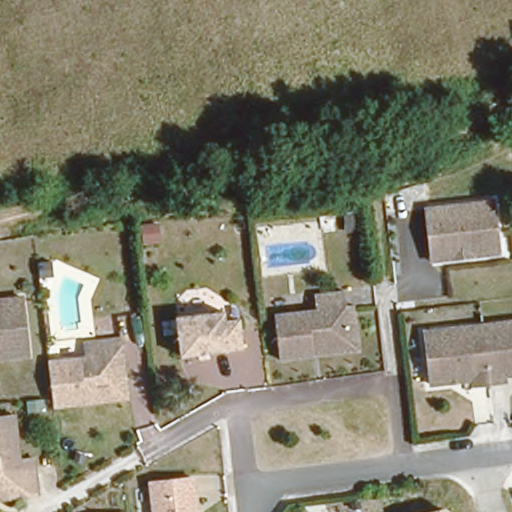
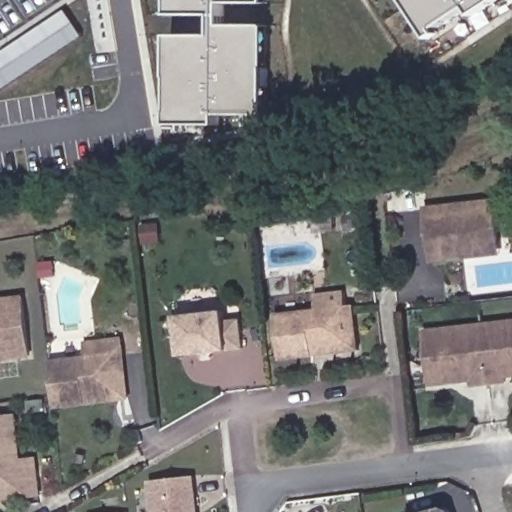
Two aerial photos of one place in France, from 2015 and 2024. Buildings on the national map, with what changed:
new [(171,36),(215,36),(215,16),(170,15),(170,0),(270,0),(270,4),(224,4),(224,25),(270,25),(271,70),(270,70),(270,121),(262,121),(261,115),(221,116),(221,125),(171,125),(171,36)]
new [(475,17),(469,10),(436,30),(440,35),(430,41),(404,0),(500,0),(475,17)]
new [(66,11),(84,37),(0,92),(0,54),(66,11)]
unchanged [(422,237),(421,209),(497,203),(500,237),(501,256),(475,258),(435,261),(423,262),(422,237)]
unchanged [(343,341),(337,350),(312,353),(311,362),(278,366),(273,319),(317,315),(316,295),(340,292),(343,341)]
unchanged [(24,354),(0,357),(0,298),(16,297),(24,354)]
unchanged [(234,352),(167,359),(165,315),(211,310),(213,318),(232,320),(234,352)]
unchanged [(500,384),(463,388),(463,381),(419,384),(417,329),(512,322),(512,376),(499,378),(500,384)]
unchanged [(89,357),(89,339),(122,335),(125,352),(120,353),(120,379),(111,394),(86,396),(87,404),(60,407),(57,392),(54,361),(89,357)]
unchanged [(38,496),(17,499),(16,490),(0,492),(0,420),(6,420),(11,456),(32,452),(38,496)]
unchanged [(152,512),(148,481),(196,475),(201,512),(152,512)]
unchanged [(453,512),(423,512),(451,505),(453,512)]
unchanged [(124,512),(116,512),(124,511),(124,512)]

